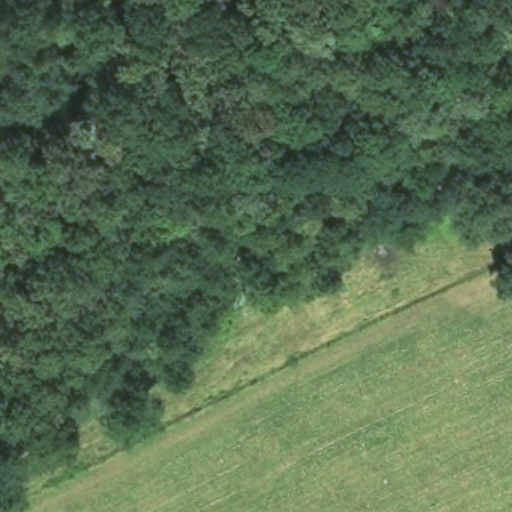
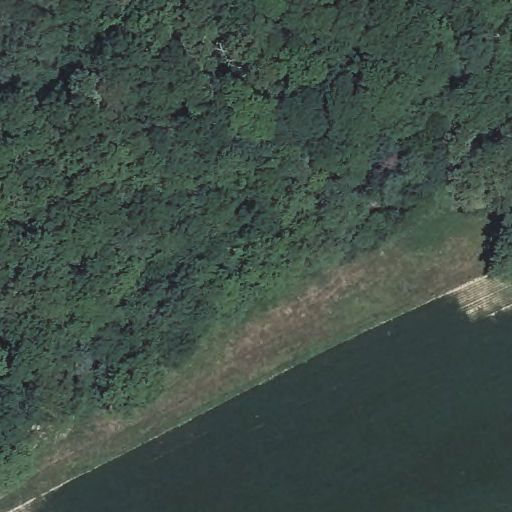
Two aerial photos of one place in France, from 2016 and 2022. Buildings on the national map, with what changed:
[]

